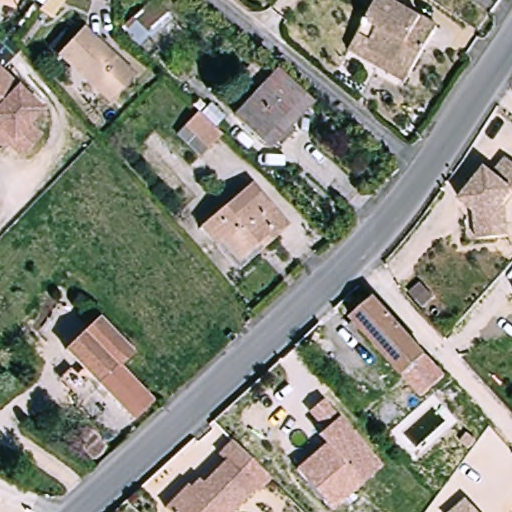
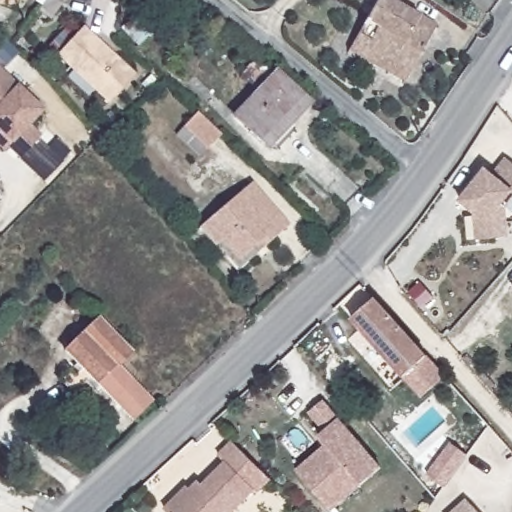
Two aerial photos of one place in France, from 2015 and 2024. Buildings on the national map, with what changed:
unchanged [(54,11),(45,2),(47,0),(65,0),(57,8),(54,11)]
unchanged [(122,27),(152,0),(161,0),(173,15),(140,49),(122,27)]
unchanged [(357,39),(381,0),(396,0),(425,15),(442,25),(438,31),(415,71),(410,79),(353,47),(357,39)]
unchanged [(84,31),(138,76),(115,103),(61,58),(84,31)]
unchanged [(278,69),(307,97),(290,116),(297,124),(277,144),(270,135),(265,140),(236,111),(278,69)]
unchanged [(0,148),(0,71),(45,116),(31,130),(43,142),(22,163),(10,151),(6,154),(0,148)]
unchanged [(203,156),(180,135),(200,111),(225,132),(203,156)]
unchanged [(461,203),(484,169),(492,175),(504,158),(512,163),(512,191),(502,204),(507,207),(511,235),(490,239),(481,241),(476,214),(461,203)]
unchanged [(243,191),(263,209),(275,199),(296,219),(272,243),(266,237),(248,255),(230,238),(222,245),(206,229),(243,191)]
unchanged [(445,377),(422,396),(358,320),(381,300),(445,377)]
unchanged [(121,365),(154,399),(135,417),(102,384),(98,388),(91,382),(96,378),(69,349),(102,319),(135,353),(121,365)]
unchanged [(71,374),(85,388),(77,395),(67,385),(65,388),(61,384),(71,374)]
unchanged [(329,446),(321,436),(327,431),(312,413),(326,401),(383,469),(332,511),(308,482),(298,471),(329,446)]
unchanged [(185,491),(192,498),(224,467),(217,459),(230,447),(232,449),(245,461),(266,483),(271,488),(257,502),(254,499),(241,512),(163,512),(185,491)]
unchanged [(466,502),(476,512),(455,512),(466,502)]

